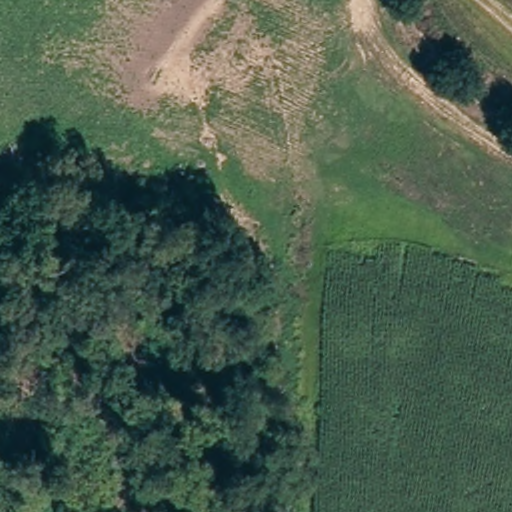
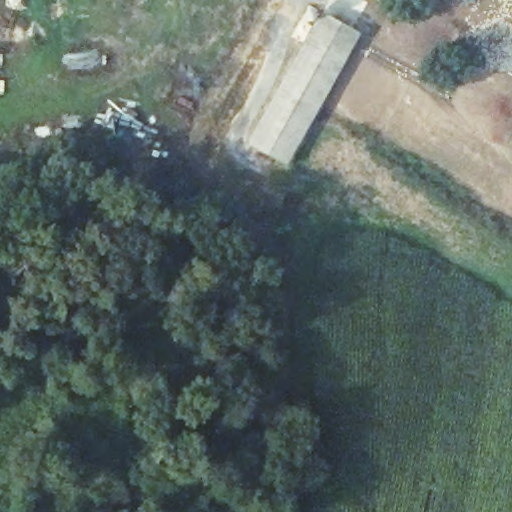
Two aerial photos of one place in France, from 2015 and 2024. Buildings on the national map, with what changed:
new [(247,143),(313,23),(306,18),(304,14),(306,10),(310,7),(317,7),(361,33),(288,166),(247,143)]

